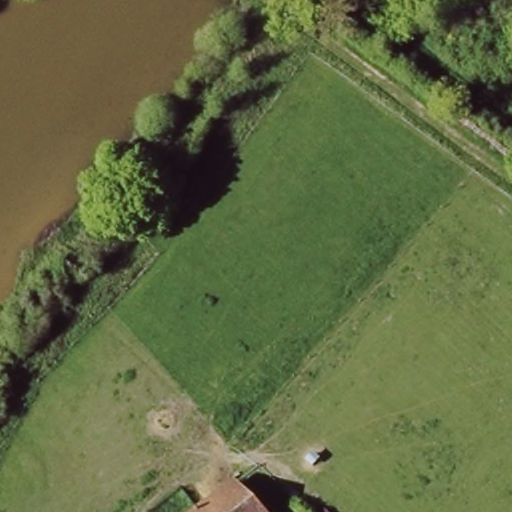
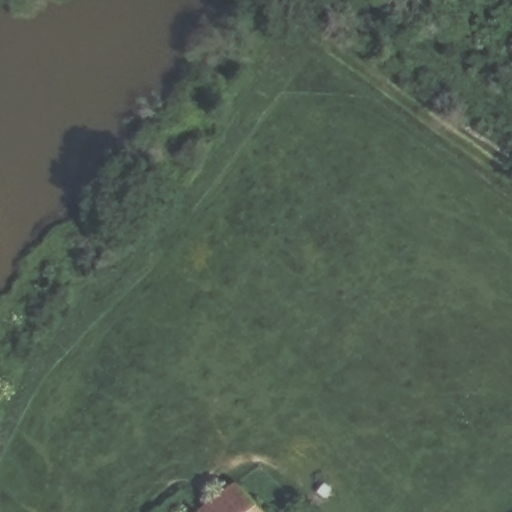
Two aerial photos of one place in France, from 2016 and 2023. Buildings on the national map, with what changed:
unchanged [(262,512),(196,512),(237,480),(262,512)]

